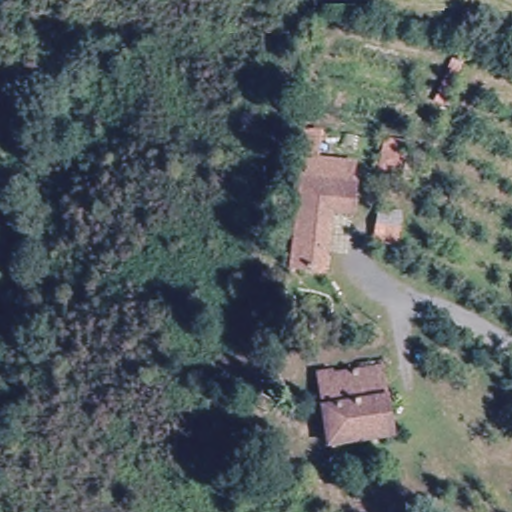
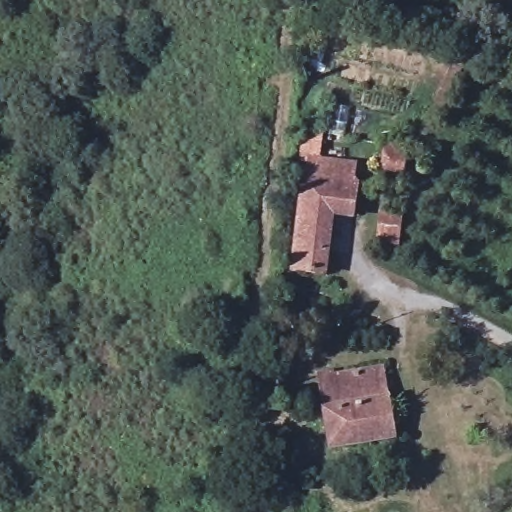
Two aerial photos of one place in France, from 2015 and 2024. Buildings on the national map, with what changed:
unchanged [(382,140),(404,145),(399,179),(376,174),(382,140)]
unchanged [(352,217),(330,214),(323,276),(292,272),(304,181),(354,187),(352,217)]
unchanged [(322,403),(314,365),(321,362),(324,370),(373,360),(384,392),(322,403)]
unchanged [(326,441),(322,403),(384,392),(392,390),(401,433),(326,441)]

